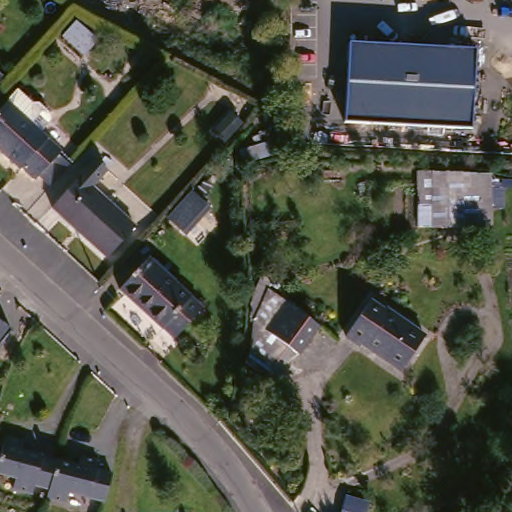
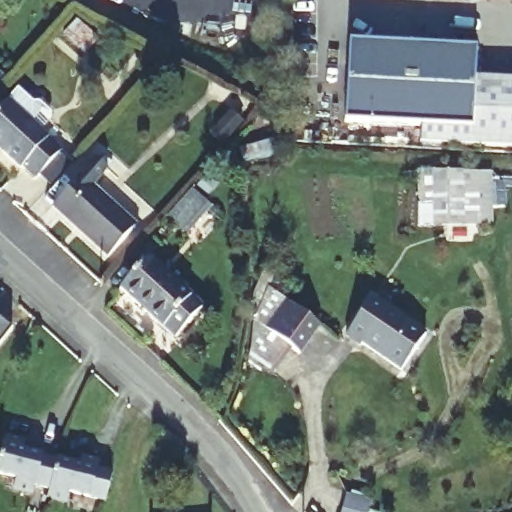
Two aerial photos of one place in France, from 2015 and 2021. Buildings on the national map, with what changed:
unchanged [(468,52),(464,132),(337,125),(341,45),(468,52)]
new [(420,143),(421,130),(464,132),(468,52),(476,52),(475,76),(512,79),(512,150),(420,143)]
unchanged [(15,179),(0,164),(0,114),(3,111),(13,100),(28,113),(34,114),(44,123),(45,129),(35,141),(57,161),(31,189),(18,176),(15,179)]
unchanged [(46,211),(75,180),(90,163),(102,174),(86,190),(130,230),(101,261),(46,211)]
unchanged [(410,229),(406,202),(429,199),(426,172),(484,170),(490,230),(410,229)]
unchanged [(168,217),(193,191),(211,208),(187,234),(168,217)]
unchanged [(154,326),(153,327),(109,288),(138,257),(193,307),(166,337),(154,326)]
unchanged [(289,349),(246,318),(259,284),(309,320),(289,349)]
unchanged [(353,338),(338,329),(361,295),(375,305),(377,303),(416,330),(393,365),(353,338)]
unchanged [(0,324),(8,329),(0,337),(0,324)]
unchanged [(63,486),(61,497),(41,492),(43,481),(29,478),(26,489),(7,484),(9,473),(0,471),(0,432),(16,436),(14,445),(36,450),(35,452),(50,455),(50,454),(73,459),(75,450),(93,455),(91,463),(106,467),(99,495),(63,486)]

